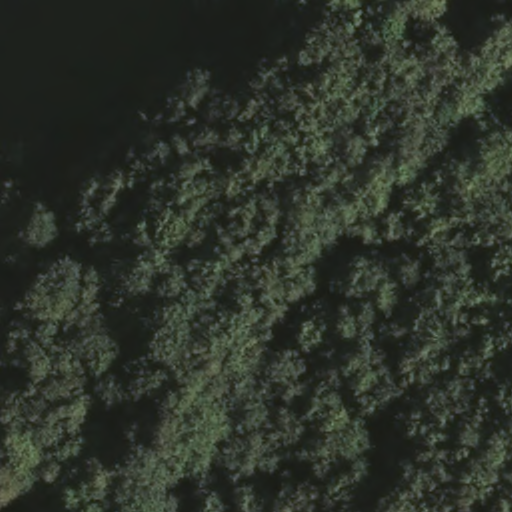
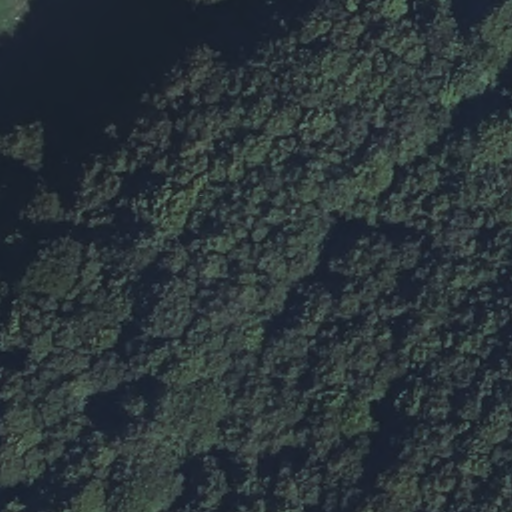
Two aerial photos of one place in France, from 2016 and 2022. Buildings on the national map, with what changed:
[]

